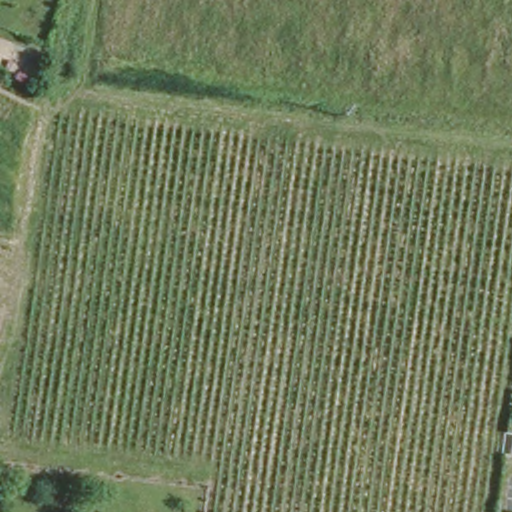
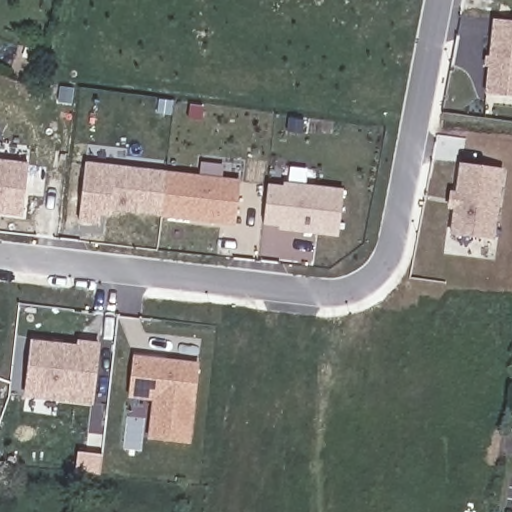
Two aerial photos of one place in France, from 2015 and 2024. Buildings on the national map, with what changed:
new [(497,20),(512,21),(512,97),(489,95),(497,20)]
new [(23,215),(0,212),(0,161),(29,164),(23,215)]
new [(110,215),(100,214),(99,222),(80,220),(86,165),(168,174),(164,215),(101,207),(111,209),(110,215)]
new [(461,165),(502,170),(493,241),(452,236),(461,165)]
new [(168,174),(227,181),(241,182),(240,197),(236,225),(163,217),(164,215),(168,174)]
new [(269,186),(284,187),(285,184),(345,191),(340,235),(280,228),(281,225),(265,223),(269,186)]
new [(33,342),(79,347),(79,343),(98,345),(92,403),(59,400),(27,397),(28,388),(33,342)]
new [(136,357),(199,366),(190,442),(151,438),(156,400),(131,397),(136,357)]

